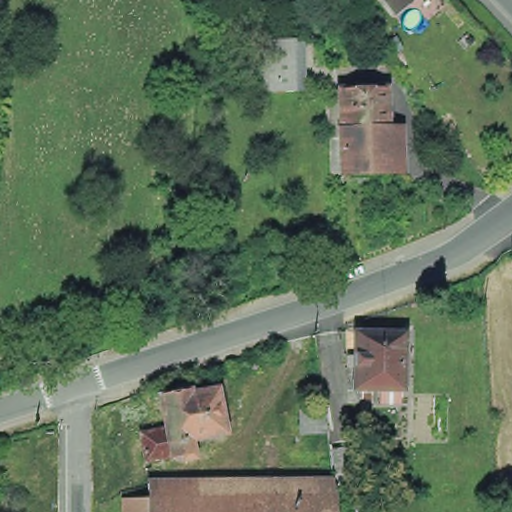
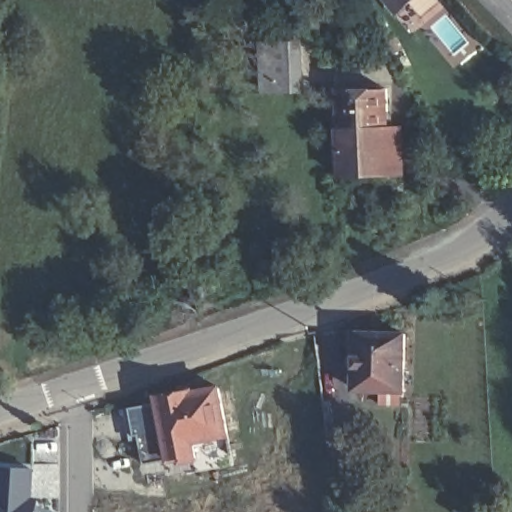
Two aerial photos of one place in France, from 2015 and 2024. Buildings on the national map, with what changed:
unchanged [(384,0),(413,0),(395,12),(384,0)]
unchanged [(265,91),(265,79),(265,59),(263,40),(291,40),(292,59),(292,78),(292,90),(265,91)]
unchanged [(350,174),(350,135),(343,135),(340,135),(339,116),(342,116),(349,116),(348,89),(394,87),(395,125),(397,172),(350,174)]
unchanged [(383,384),(358,383),(358,360),(351,360),(352,350),(359,350),(360,327),(408,328),(407,385),(404,385),(403,398),(382,397),(383,384)]
unchanged [(162,386),(192,380),(193,385),(220,380),(228,422),(197,429),(200,447),(185,450),(184,445),(173,447),(148,452),(143,423),(168,418),(162,386)]
demolished [(299,407),(322,404),(326,428),(300,432),(299,407)]
new [(41,497),(40,512),(0,512),(0,466),(37,468),(34,497),(41,497)]
demolished [(338,486),(339,512),(178,512),(177,488),(338,486)]
demolished [(177,488),(178,512),(153,512),(152,489),(177,488)]

